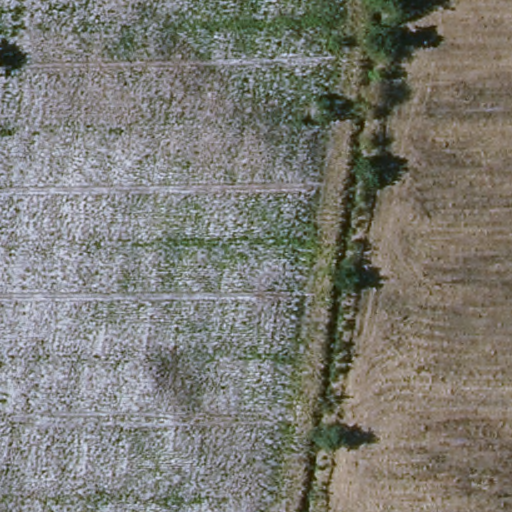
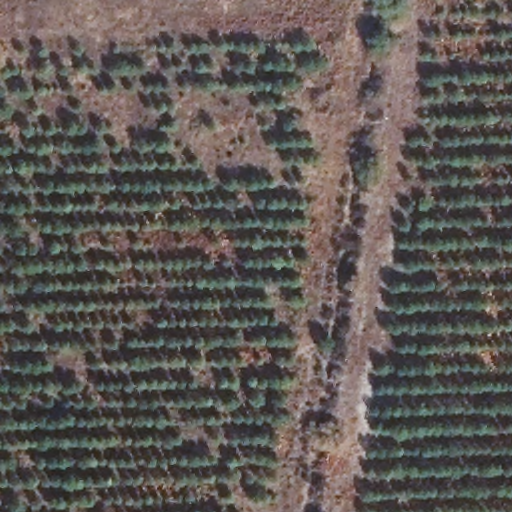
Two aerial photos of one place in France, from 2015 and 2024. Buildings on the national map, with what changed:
[]

